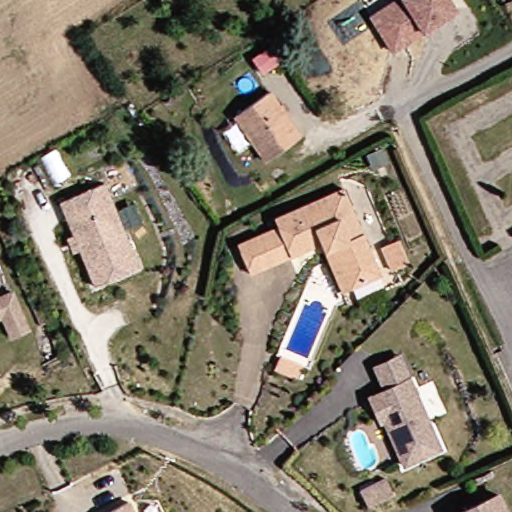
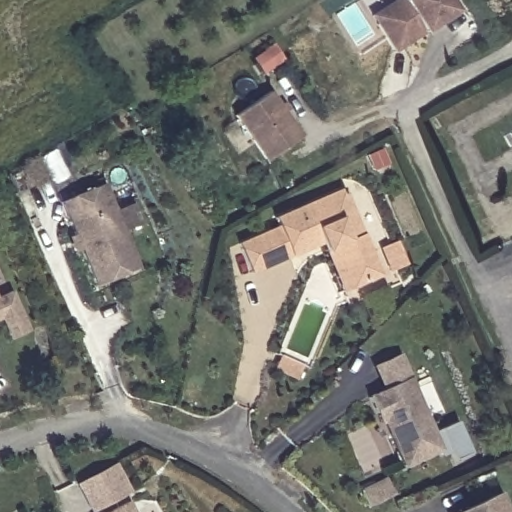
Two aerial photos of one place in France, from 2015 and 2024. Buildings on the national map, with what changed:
unchanged [(449,0),(456,11),(393,52),(375,25),(370,17),(397,0),(449,0)]
unchanged [(305,135),(270,159),(241,114),(275,91),(305,135)]
unchanged [(138,270),(92,289),(58,204),(104,185),(138,270)]
unchanged [(325,256),(335,253),(331,243),(276,266),(250,277),(238,247),(264,236),(279,230),(275,220),(345,191),(382,280),(351,292),(342,296),(325,256)]
unchanged [(409,267),(393,274),(383,251),(400,244),(409,267)]
unchanged [(5,298),(21,291),(37,329),(20,337),(11,315),(0,320),(0,285),(5,298)]
unchanged [(300,384),(274,373),(282,355),(307,365),(300,384)]
unchanged [(404,466),(385,422),(380,424),(376,415),(369,399),(386,391),(375,368),(399,357),(410,380),(441,449),(404,466)]
new [(94,512),(89,512),(74,483),(117,462),(133,491),(94,512)]
unchanged [(394,494),(372,505),(364,489),(387,479),(394,494)]
unchanged [(501,496),(509,512),(470,512),(501,496)]
unchanged [(131,512),(118,512),(128,507),(131,512)]

